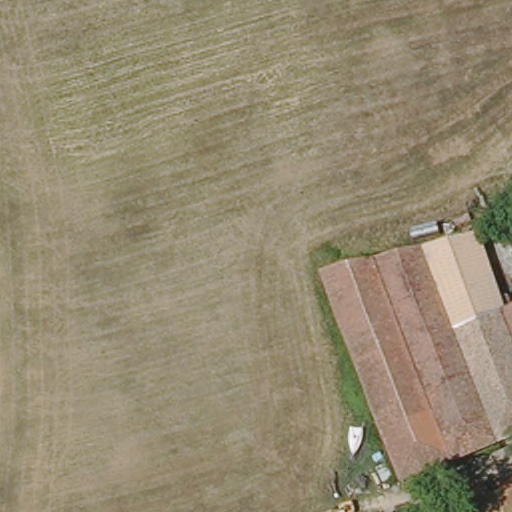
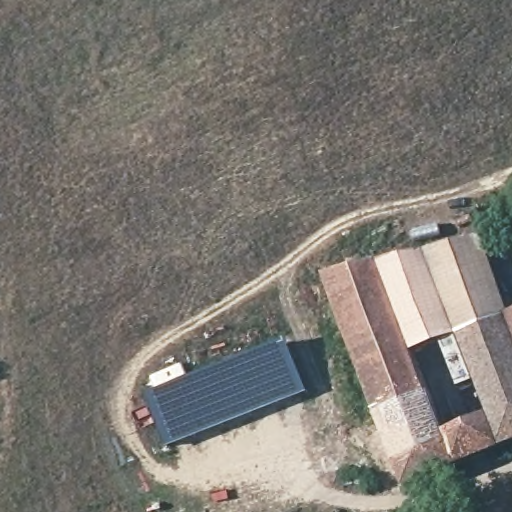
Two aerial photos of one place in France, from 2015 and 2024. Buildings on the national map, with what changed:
unchanged [(437,470),(409,482),(408,480),(317,272),(483,236),(489,250),(507,244),(512,259),(512,441),(437,470)]
new [(207,371),(286,340),(309,393),(273,409),(166,448),(154,414),(157,413),(150,396),(207,371)]
unchanged [(395,472),(401,486),(389,491),(382,477),(395,472)]
unchanged [(475,501),(512,488),(512,512),(479,512),(475,501)]

